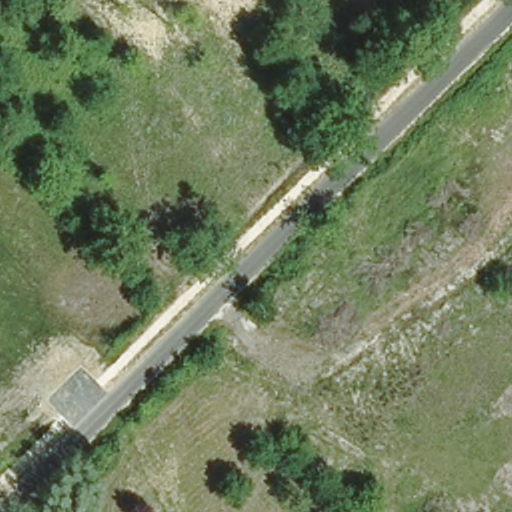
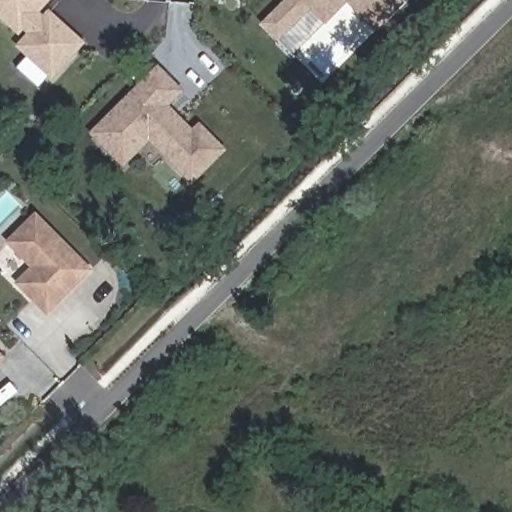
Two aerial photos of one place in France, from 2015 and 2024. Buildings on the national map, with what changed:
new [(16,46),(27,35),(23,31),(18,37),(0,20),(0,0),(50,0),(40,11),(44,15),(49,10),(84,42),(53,80),(16,46)]
new [(53,0),(62,0),(58,5),(53,0)]
new [(348,3),(325,25),(311,10),(278,41),(261,24),(285,0),(406,0),(374,30),(348,3)]
new [(191,181),(149,139),(141,145),(131,133),(109,151),(93,134),(158,71),(179,92),(161,108),(189,138),(199,128),(221,151),(191,181)]
new [(6,243),(36,213),(92,270),(46,317),(15,283),(30,268),(6,243)]
new [(0,361),(0,354),(3,358),(0,361)]

